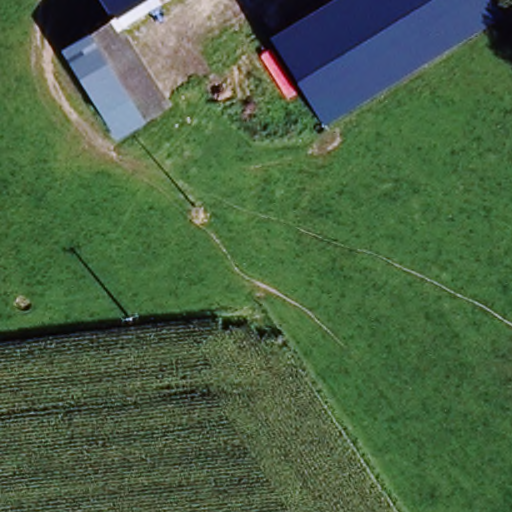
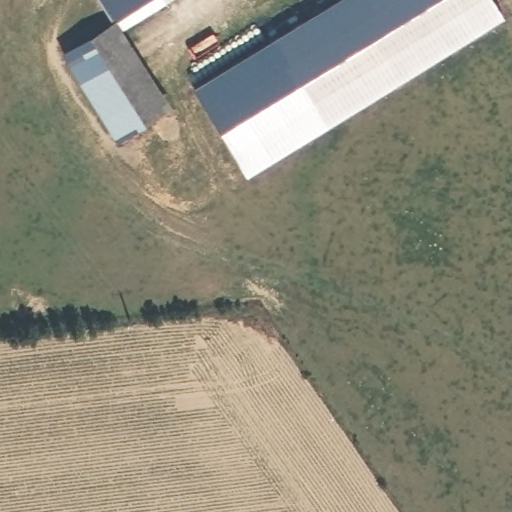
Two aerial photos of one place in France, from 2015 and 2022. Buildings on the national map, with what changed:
unchanged [(101,0),(170,0),(120,31),(170,110),(162,114),(140,128),(85,46),(110,29),(116,25),(101,0)]
unchanged [(332,0),(495,0),(504,14),(325,126),(270,37),(332,0)]
new [(325,126),(246,173),(194,85),(270,37),(325,126)]
unchanged [(69,54),(85,46),(140,128),(121,139),(69,54)]

